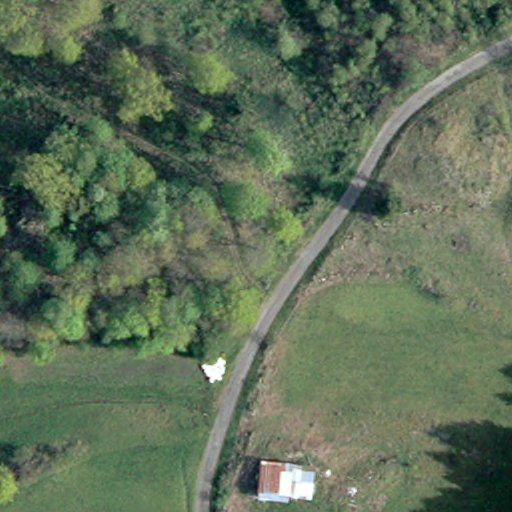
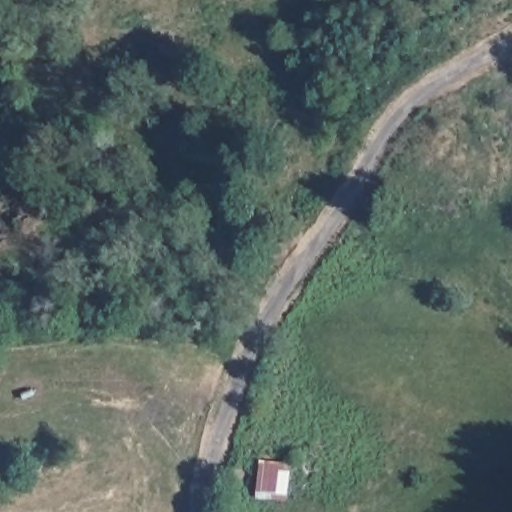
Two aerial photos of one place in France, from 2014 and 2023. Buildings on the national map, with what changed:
unchanged [(312,498),(255,493),(259,459),(315,468),(312,498)]

